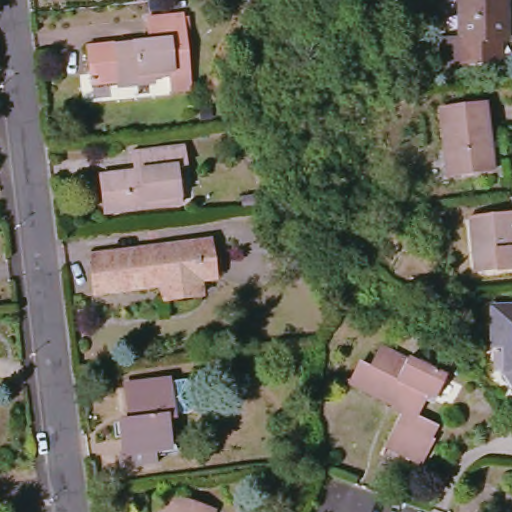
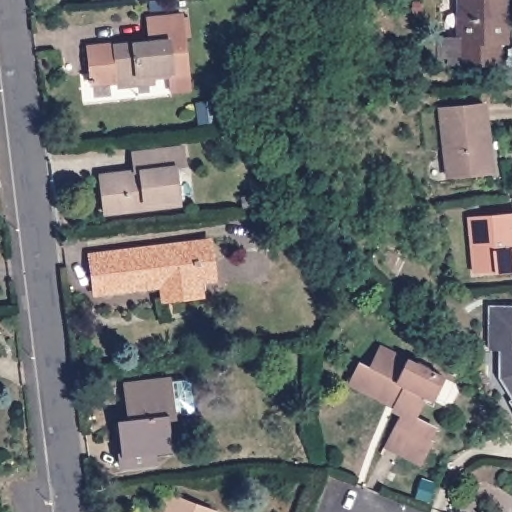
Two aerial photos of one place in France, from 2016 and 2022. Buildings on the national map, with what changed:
unchanged [(494,42),(495,64),(447,64),(447,56),(437,56),(437,39),(455,40),(456,0),(502,0),(502,42),(494,42)]
unchanged [(195,90),(171,94),(167,78),(91,89),(87,45),(148,37),(147,16),(186,13),(195,90)]
unchanged [(485,104),(489,141),(487,141),(490,173),(450,178),(442,109),(485,104)]
unchanged [(133,153),(139,152),(184,146),(186,166),(177,168),(180,204),(105,214),(101,175),(135,170),(133,153)]
unchanged [(512,269),(475,273),(471,219),(512,214),(512,269)]
unchanged [(163,285),(95,294),(91,255),(211,240),(215,279),(201,281),(203,296),(173,299),(165,300),(163,285)]
unchanged [(512,393),(502,377),(502,351),(492,350),(492,309),(512,308),(512,393)]
unchanged [(373,368),(382,349),(417,366),(420,361),(430,367),(429,369),(447,378),(435,401),(425,396),(414,418),(435,429),(430,440),(433,444),(410,459),(385,447),(402,413),(395,409),(397,406),(352,384),(362,363),(373,368)]
unchanged [(165,384),(165,387),(182,384),(186,388),(189,413),(185,417),(170,419),(170,421),(162,422),(167,453),(152,455),(153,468),(118,473),(117,459),(120,459),(117,428),(127,427),(123,391),(165,384)]
unchanged [(160,512),(167,494),(215,512),(161,512),(160,512)]

